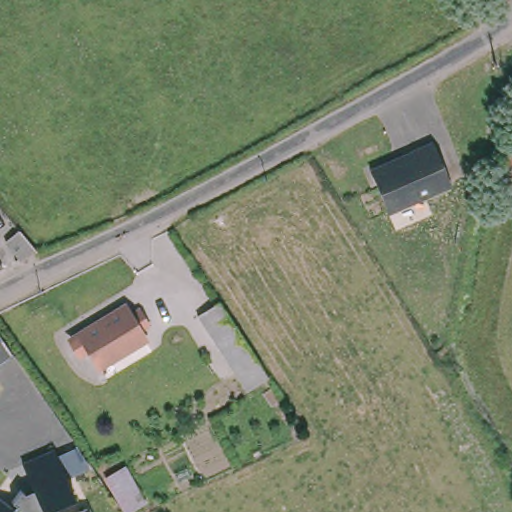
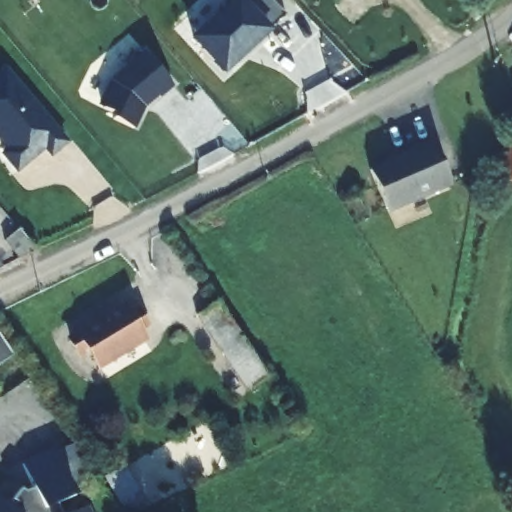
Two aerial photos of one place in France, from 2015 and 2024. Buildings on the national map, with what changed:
new [(225,8),(222,5),(226,0),(273,0),(286,15),(256,42),(255,41),(242,52),(244,53),(223,72),(192,37),(225,8)]
new [(173,85),(160,97),(158,95),(144,107),(133,128),(114,119),(116,114),(104,109),(102,102),(112,81),(142,49),(173,85)]
new [(45,148),(41,151),(40,149),(33,155),(35,157),(25,164),(0,135),(0,75),(7,70),(67,142),(52,155),(45,148)]
unchanged [(495,186),(512,128),(512,187),(495,186)]
unchanged [(372,177),(390,162),(392,164),(410,151),(407,147),(425,133),(453,170),(400,213),(372,177)]
unchanged [(17,262),(1,244),(17,231),(36,253),(17,262)]
unchanged [(0,276),(0,269),(5,274),(0,276)]
unchanged [(251,385),(203,327),(195,317),(213,302),(270,370),(251,385)]
unchanged [(125,307),(132,319),(140,313),(146,322),(138,327),(145,337),(127,350),(101,367),(90,350),(82,355),(73,342),(104,321),(125,307)]
unchanged [(0,363),(0,335),(12,355),(0,363)]
unchanged [(33,488),(22,462),(54,448),(76,494),(54,503),(59,512),(0,512),(0,498),(12,506),(20,490),(33,488)]
unchanged [(147,502),(131,512),(123,512),(103,478),(127,465),(147,502)]
unchanged [(92,512),(70,512),(90,505),(92,512)]

